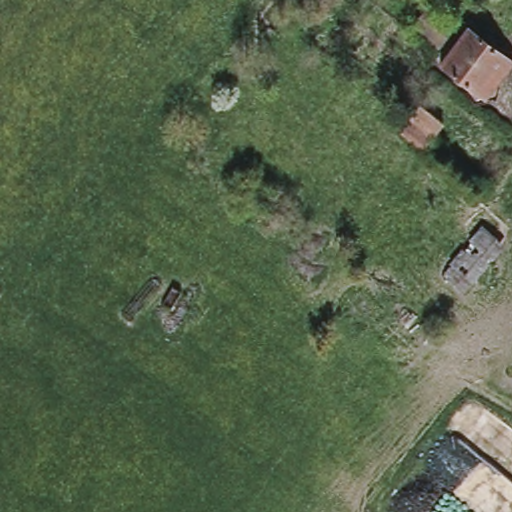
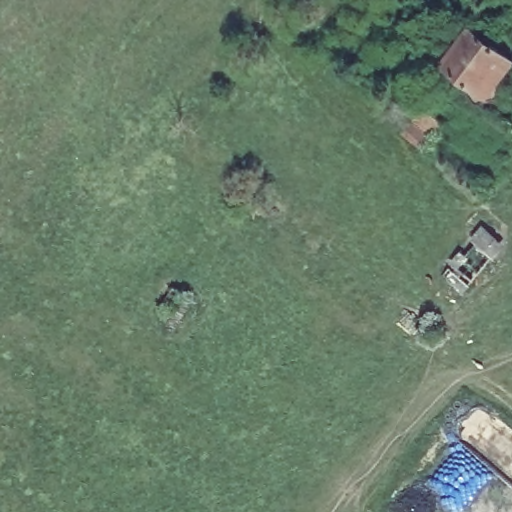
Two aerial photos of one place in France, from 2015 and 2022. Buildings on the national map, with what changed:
unchanged [(302,20),(321,0),(337,0),(311,29),(302,20)]
unchanged [(428,8),(450,28),(434,46),(412,26),(428,8)]
unchanged [(465,91),(470,87),(440,63),(470,28),(505,56),(512,63),(512,66),(485,99),(480,104),(465,91)]
unchanged [(418,105),(443,124),(424,149),(400,130),(407,120),(418,105)]
unchanged [(503,246),(464,293),(443,275),(482,229),(503,246)]

